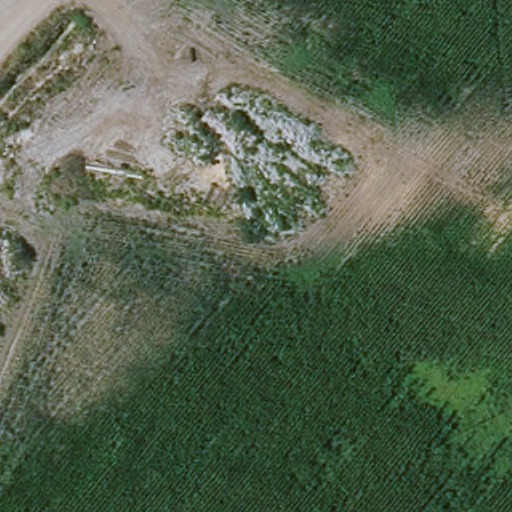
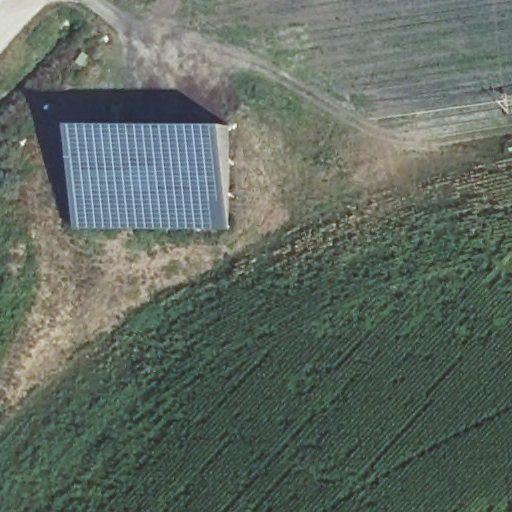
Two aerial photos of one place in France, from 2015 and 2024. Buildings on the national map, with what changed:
new [(77,125),(227,125),(231,229),(78,227),(77,125)]

